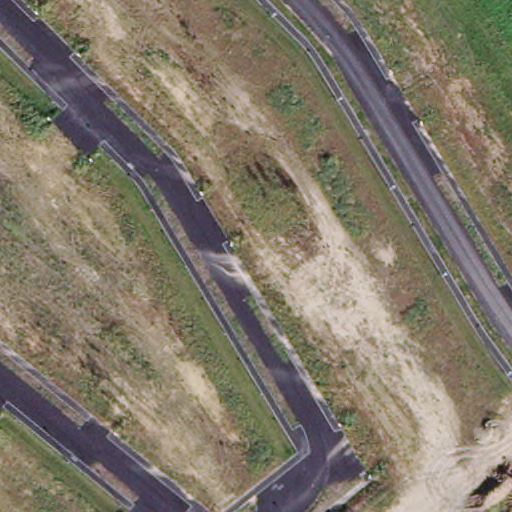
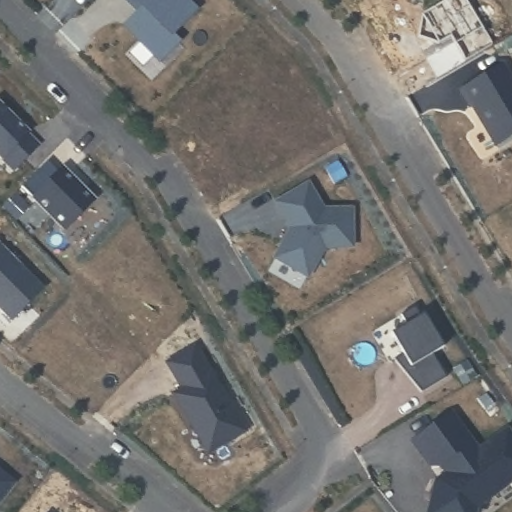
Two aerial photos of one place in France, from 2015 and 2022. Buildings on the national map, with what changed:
new [(146,6),(140,0),(189,0),(200,11),(176,35),(183,42),(165,61),(128,24),(146,6)]
new [(415,15),(439,0),(457,0),(484,46),(457,62),(442,38),(433,44),(410,37),(415,15)]
new [(495,66),(512,95),(512,132),(485,148),(451,92),(495,66)]
new [(33,136),(32,137),(43,148),(18,174),(0,155),(0,105),(1,104),(33,136)]
new [(51,165),(63,176),(67,172),(99,204),(69,234),(26,190),(51,165)]
new [(297,273),(275,260),(292,228),(289,222),(287,223),(275,204),(307,185),(322,212),(350,211),(352,248),(323,249),(315,265),(307,278),(297,273)]
new [(16,323),(0,307),(0,246),(46,292),(16,323)]
new [(390,335),(406,325),(401,315),(415,308),(420,317),(425,315),(444,347),(432,354),(447,378),(427,391),(422,394),(395,360),(403,355),(390,335)]
new [(197,351),(247,435),(210,456),(176,399),(185,393),(170,367),(197,351)]
new [(455,466),(450,458),(438,467),(430,466),(412,442),(451,413),(478,450),(508,428),(512,434),(512,482),(510,483),(500,481),(479,496),(476,507),(475,512),(428,512),(436,481),(455,466)]
new [(0,512),(0,470),(21,487),(0,512)]

